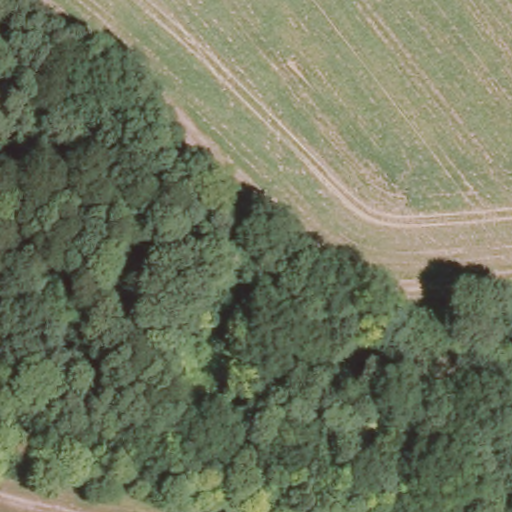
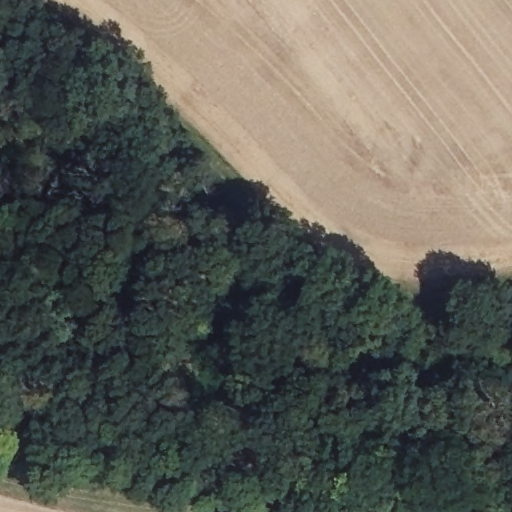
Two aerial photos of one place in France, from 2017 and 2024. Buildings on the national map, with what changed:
unchanged [(407,441),(409,422),(414,423),(415,414),(434,417),(434,425),(440,426),(437,445),(407,441)]

